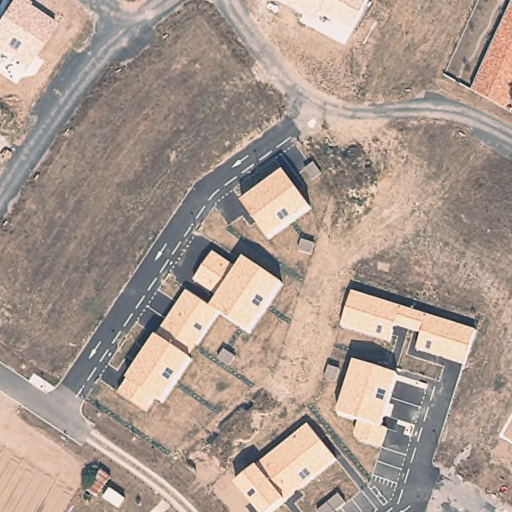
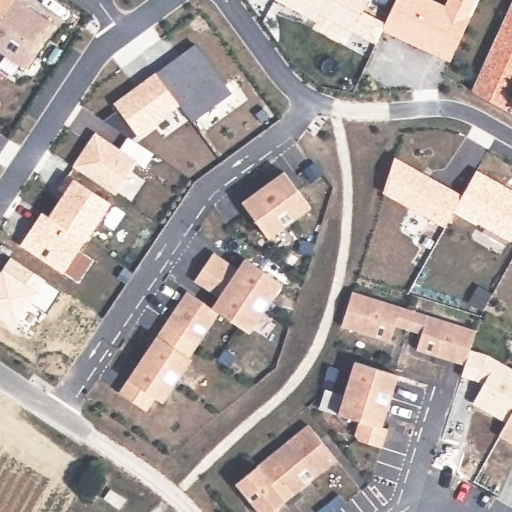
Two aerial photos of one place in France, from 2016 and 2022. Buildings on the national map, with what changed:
unchanged [(31,8),(55,24),(28,69),(0,53),(0,0),(26,0),(33,4),(31,8)]
unchanged [(321,15),(318,22),(273,1),(273,0),(367,0),(350,31),(321,15)]
new [(434,0),(445,5),(447,0),(477,0),(450,62),(381,31),(395,0),(434,0)]
unchanged [(512,12),(512,111),(476,92),(512,12)]
new [(180,56),(195,45),(231,94),(192,122),(179,105),(137,136),(114,105),(156,74),(180,56)]
new [(95,134),(119,150),(128,137),(153,155),(144,168),(136,162),(115,195),(72,167),(95,134)]
unchanged [(444,227),(383,192),(395,157),(462,195),(476,171),(512,192),(512,236),(510,240),(454,212),(444,227)]
unchanged [(310,210),(267,241),(242,202),(284,172),(310,210)]
new [(43,212),(50,215),(73,178),(111,203),(86,241),(64,273),(21,246),(43,212)]
unchanged [(214,252),(239,265),(244,257),(283,283),(250,335),(220,315),(161,403),(154,399),(146,411),(119,393),(186,291),(213,307),(218,297),(193,282),(214,252)]
unchanged [(417,352),(420,333),(396,327),(390,342),(341,327),(353,291),(475,330),(464,365),(417,352)]
new [(512,369),(512,413),(507,422),(473,404),(481,385),(461,377),(464,365),(469,350),(485,353),(512,369)]
unchanged [(382,447),(359,443),(354,438),(359,422),(338,416),(353,362),(397,376),(382,427),(388,429),(382,447)]
unchanged [(512,413),(512,446),(499,438),(512,413)]
unchanged [(273,512),(257,512),(233,485),(306,424),(337,461),(273,512)]
unchanged [(102,471),(111,477),(97,497),(94,496),(91,500),(85,495),(88,491),(102,471)]

